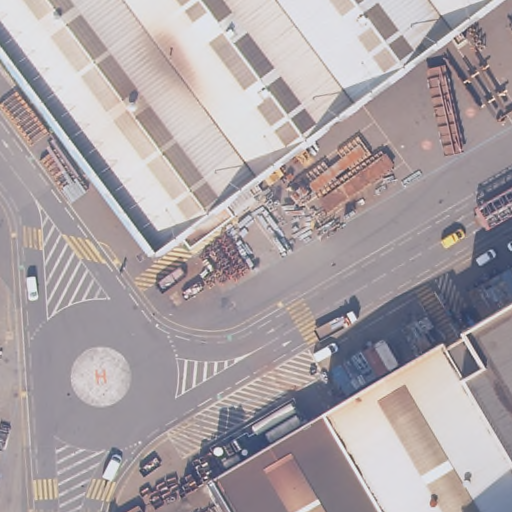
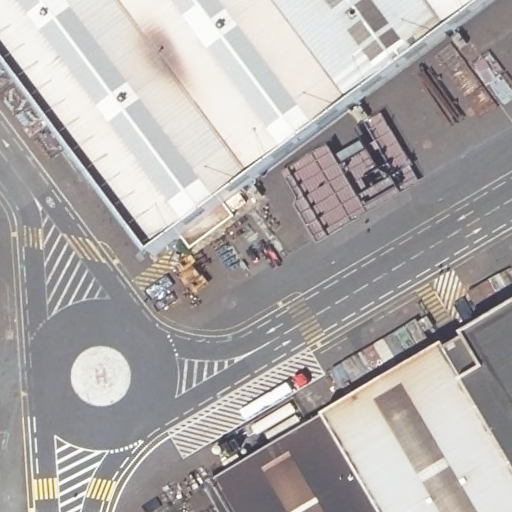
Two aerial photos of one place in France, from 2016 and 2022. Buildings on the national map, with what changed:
unchanged [(231,209),(229,206),(181,242),(178,237),(171,229),(150,244),(146,239),(146,238),(0,43),(0,0),(510,0),(264,184),(231,209)]
unchanged [(439,346),(512,303),(512,464),(439,346)]
unchanged [(439,346),(512,464),(512,512),(231,512),(212,480),(439,346)]

